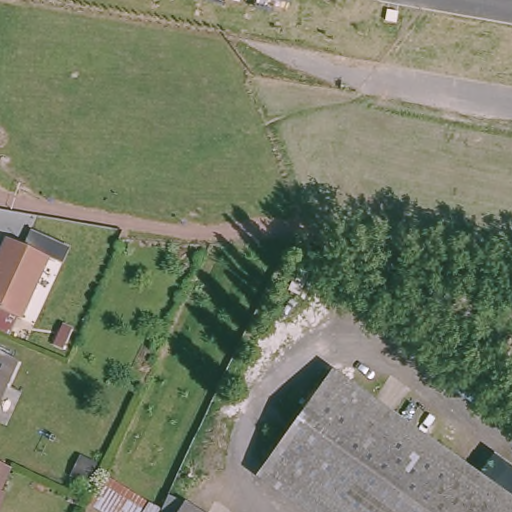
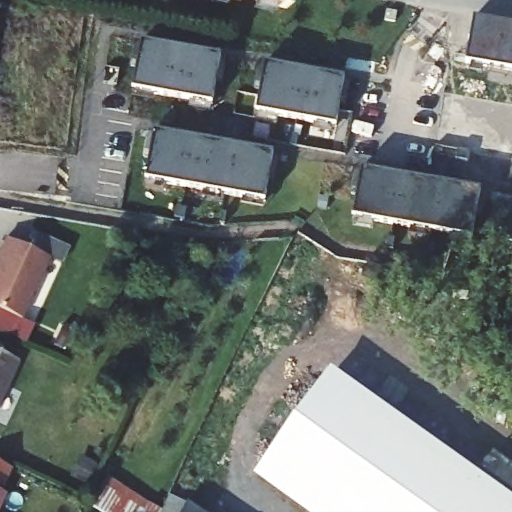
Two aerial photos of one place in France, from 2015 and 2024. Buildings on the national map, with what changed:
unchanged [(202,0),(225,0),(224,5),(202,0)]
unchanged [(230,0),(240,0),(239,2),(230,0)]
unchanged [(275,4),(274,13),(254,7),(253,2),(253,0),(289,0),(288,7),(275,4)]
new [(512,27),(512,74),(484,69),(482,77),(469,74),(470,66),(465,65),(474,20),(512,27)]
new [(141,42),(220,56),(212,104),(132,90),(141,42)]
new [(265,63),(345,77),(336,126),(256,112),(265,63)]
new [(154,132),(274,153),(265,201),(145,181),(154,132)]
new [(472,237),(354,217),(361,168),(480,188),(472,237)]
new [(502,206),(512,208),(512,253),(505,252),(503,260),(489,257),(490,249),(486,247),(494,204),(502,206)]
unchanged [(55,258),(25,320),(0,308),(0,266),(13,238),(55,258)]
unchanged [(0,399),(0,350),(18,358),(0,399)]
unchanged [(274,456),(332,373),(512,506),(512,512),(349,512),(274,456)]
unchanged [(7,497),(0,512),(0,466),(12,472),(2,494),(7,497)]
unchanged [(162,512),(108,512),(92,503),(105,478),(162,512)]
unchanged [(187,497),(209,512),(176,512),(187,497)]

